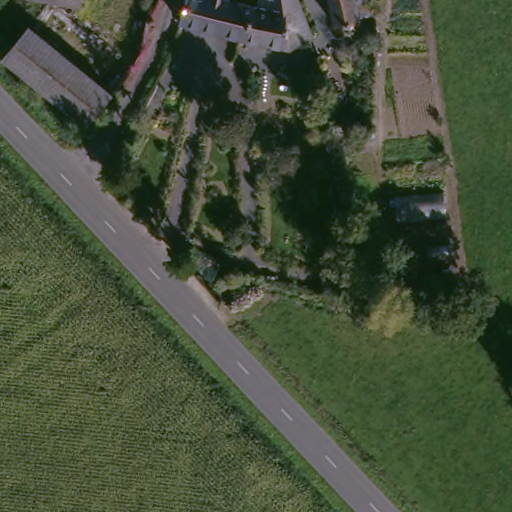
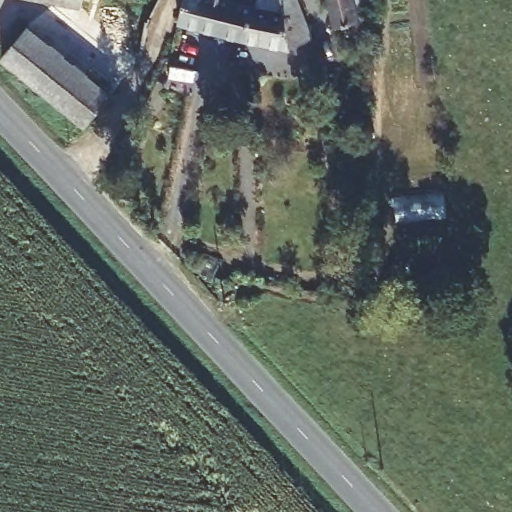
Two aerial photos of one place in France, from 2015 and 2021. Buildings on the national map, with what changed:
unchanged [(60,0),(79,0),(78,4),(60,0)]
unchanged [(226,0),(277,11),(275,0),(293,0),(308,42),(283,50),(172,28),(180,0),(226,0)]
unchanged [(332,27),(326,0),(353,0),(359,22),(332,27)]
unchanged [(31,25),(111,96),(85,129),(2,59),(31,25)]

